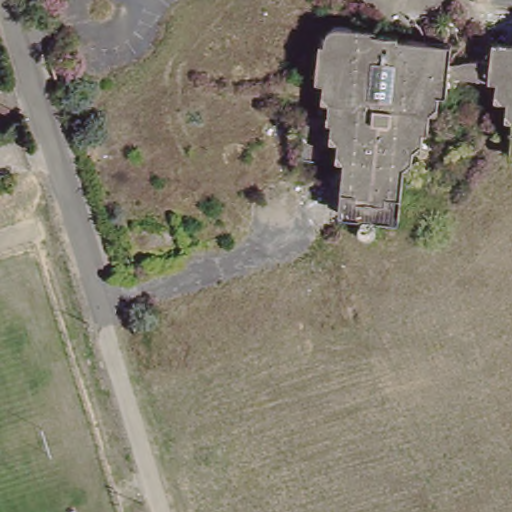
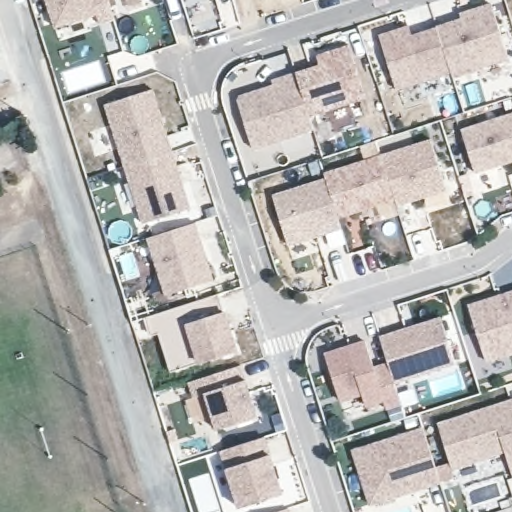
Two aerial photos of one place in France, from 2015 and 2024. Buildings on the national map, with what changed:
new [(115,22),(100,27),(96,17),(53,30),(45,0),(109,0),(115,22)]
new [(125,1),(125,0),(128,0),(125,1)]
new [(453,76),(452,71),(397,89),(379,34),(409,25),(412,35),(462,18),(460,13),(491,2),(509,58),(453,76)]
demolished [(440,88),(431,87),(430,103),(421,103),(421,117),(416,118),(415,139),(409,142),(407,161),(396,160),(392,215),(331,207),(332,184),(335,155),(325,152),(328,133),(322,131),(322,117),(317,115),(318,95),(312,91),(311,78),(305,76),(312,30),(317,30),(322,23),(355,23),(397,33),(443,39),(444,54),(480,54),(482,39),(495,20),(512,21),(512,149),(505,148),(507,114),(497,114),(498,95),(487,93),(488,75),(443,71),(440,88)]
new [(310,117),(296,72),(320,65),(317,55),(350,44),(367,99),(310,117)]
new [(296,72),(313,131),(255,149),(238,96),(273,85),(272,79),(296,72)]
new [(105,105),(153,89),(191,208),(142,224),(105,105)]
new [(476,175),(461,130),(512,113),(512,163),(476,175)]
new [(398,208),(395,200),(338,219),(325,177),(323,172),(431,139),(447,189),(398,208)]
new [(342,230),(289,247),(273,194),(325,177),(342,230)]
new [(215,281),(165,296),(147,238),(197,223),(215,281)]
new [(158,331),(152,333),(149,324),(146,314),(220,291),(223,301),(237,348),(183,365),(170,369),(158,331)]
new [(488,362),(472,311),(504,300),(502,296),(512,293),(512,355),(488,362)]
new [(441,315),(456,362),(395,381),(380,334),(441,315)]
new [(395,381),(403,405),(387,410),(385,402),(367,408),(363,396),(340,402),(325,353),(365,340),(373,366),(390,362),(395,381)]
new [(258,417),(215,431),(204,394),(193,397),(188,382),(242,365),(258,417)]
new [(512,398),(512,472),(505,450),(452,466),(438,421),(512,398)]
new [(367,492),(353,448),(424,426),(441,480),(425,486),(370,504),(367,492)]
new [(265,434),(283,491),(240,505),(222,448),(265,434)]
new [(289,512),(268,512),(287,506),(289,512)]

